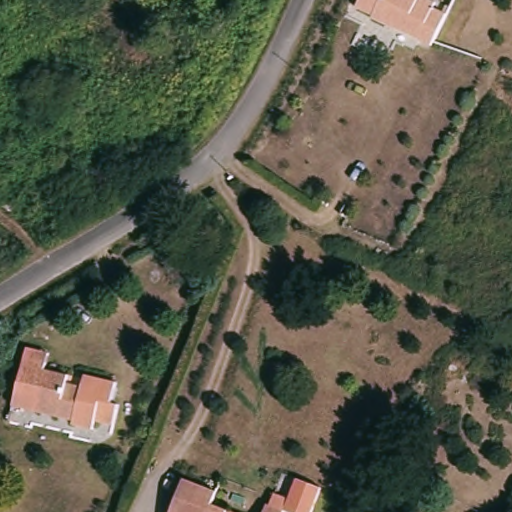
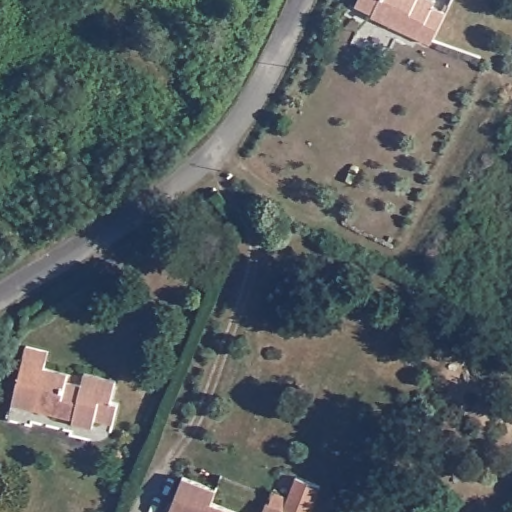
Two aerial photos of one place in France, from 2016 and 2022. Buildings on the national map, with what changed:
unchanged [(434,2),(446,7),(431,39),(418,32),(372,11),(374,9),(356,0),(434,0),(434,2)]
unchanged [(16,382),(24,350),(26,341),(49,346),(46,356),(45,362),(73,368),(71,377),(82,379),(85,367),(116,375),(111,396),(119,397),(114,417),(95,413),(93,422),(73,417),(74,413),(34,403),(13,398),(16,382)]
unchanged [(270,503),(274,492),(289,497),(296,478),(297,475),(321,484),(320,488),(310,512),(296,512),(284,508),(282,512),(263,512),(267,502),(270,503)]
unchanged [(216,489),(212,502),(237,512),(168,512),(182,477),(216,489)]

